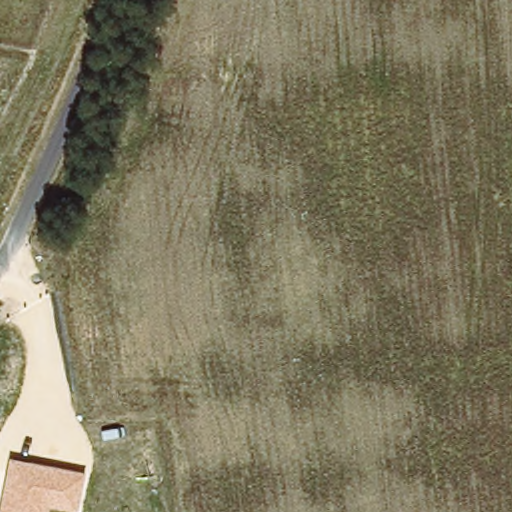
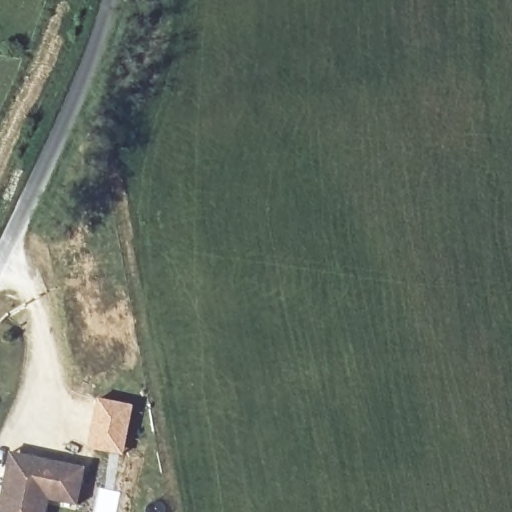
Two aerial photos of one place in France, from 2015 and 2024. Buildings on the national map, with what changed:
new [(98,399),(132,406),(125,440),(122,455),(88,447),(91,433),(98,399)]
unchanged [(78,506),(49,501),(47,512),(0,512),(0,498),(8,451),(85,467),(78,506)]

